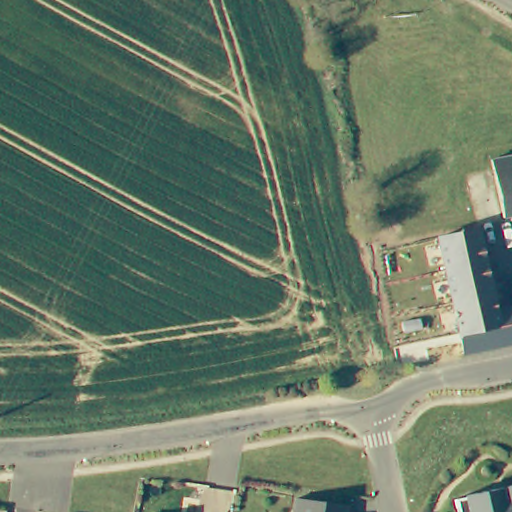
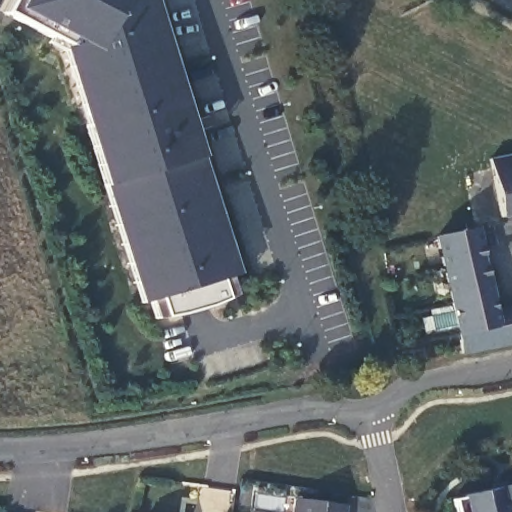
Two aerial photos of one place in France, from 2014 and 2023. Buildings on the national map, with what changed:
new [(104,185),(64,48),(71,46),(7,12),(13,0),(157,0),(203,157),(239,275),(229,277),(235,296),(223,300),(204,307),(186,312),(170,317),(155,318),(151,301),(140,303),(104,185)]
demolished [(431,73),(443,126),(397,137),(413,213),(366,222),(340,94),(431,73)]
unchanged [(512,163),(512,219),(503,221),(492,167),(512,163)]
unchanged [(477,237),(496,320),(503,351),(464,360),(437,244),(477,237)]
unchanged [(496,320),(512,316),(512,349),(503,351),(496,320)]
unchanged [(469,497),(469,495),(512,486),(512,512),(459,512),(456,500),(469,497)]
unchanged [(295,512),(297,498),(348,506),(347,512),(295,512)]

